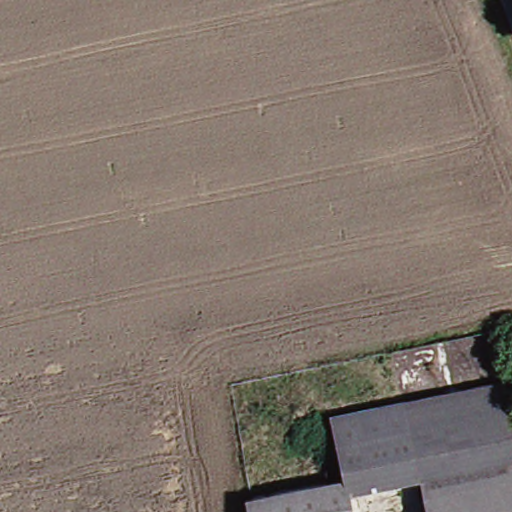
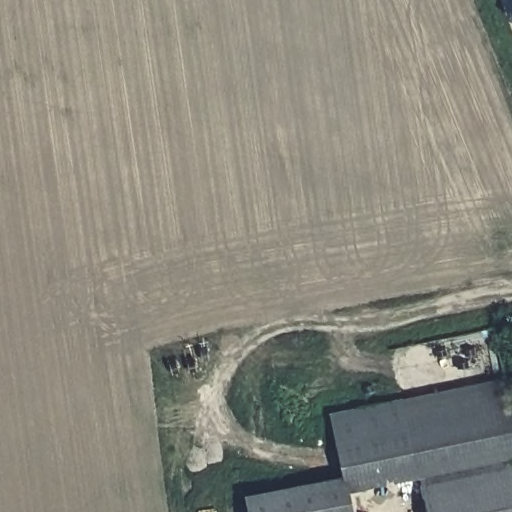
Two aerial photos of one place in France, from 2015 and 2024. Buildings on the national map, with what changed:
unchanged [(332,422),(501,390),(512,446),(512,462),(420,481),(346,496),(343,478),(332,422)]
unchanged [(420,481),(512,462),(512,512),(426,512),(420,481)]
unchanged [(343,478),(346,496),(349,512),(247,512),(244,500),(343,478)]

